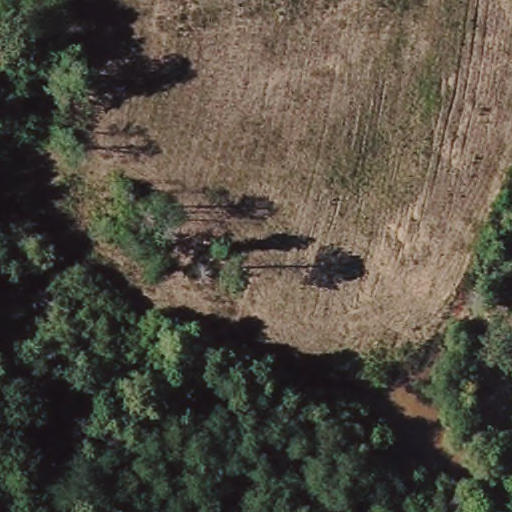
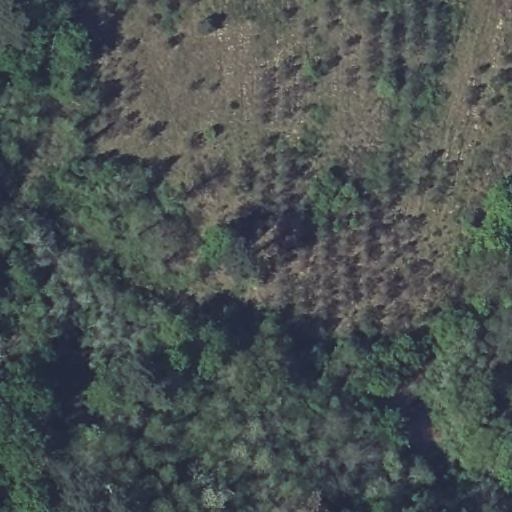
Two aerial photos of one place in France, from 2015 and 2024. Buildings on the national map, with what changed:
[]

